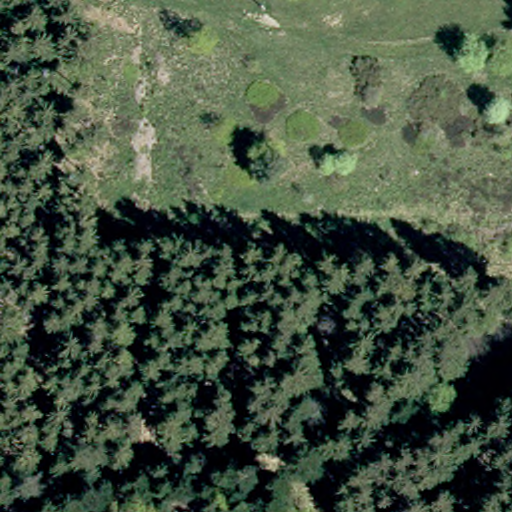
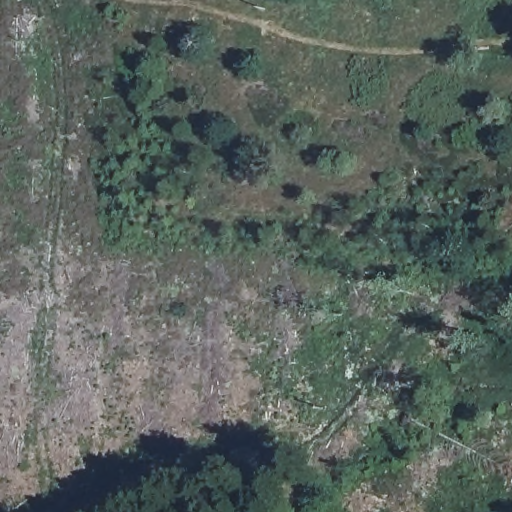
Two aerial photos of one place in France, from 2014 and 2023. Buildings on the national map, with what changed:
[]

